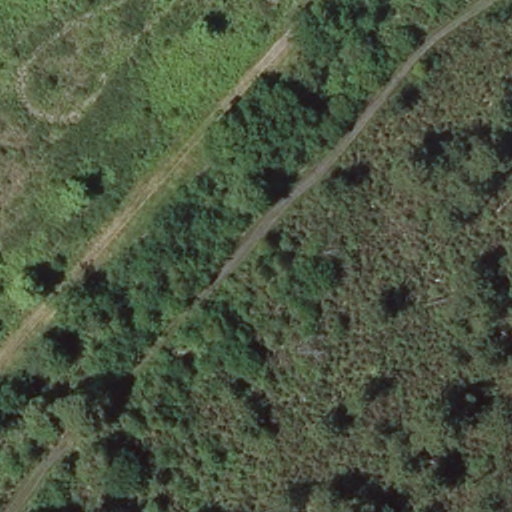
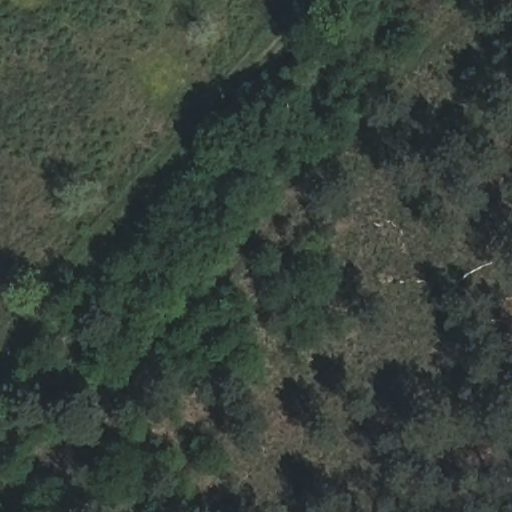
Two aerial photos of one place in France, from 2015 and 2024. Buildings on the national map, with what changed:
[]

